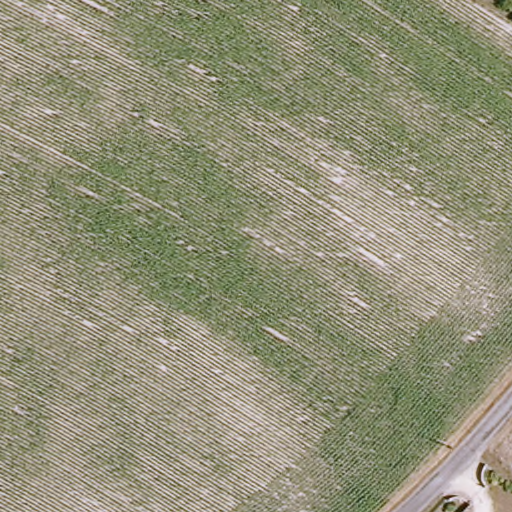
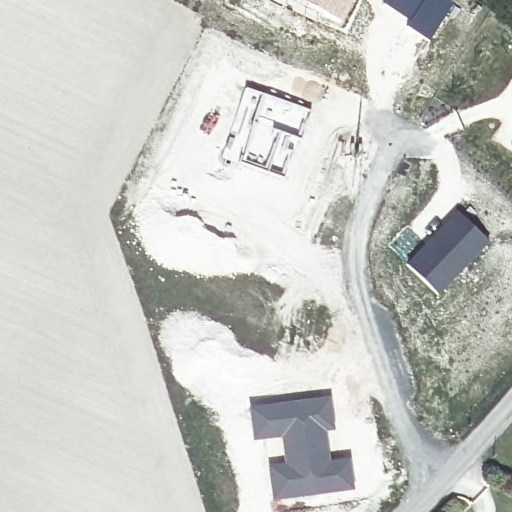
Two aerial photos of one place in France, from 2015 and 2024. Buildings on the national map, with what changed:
new [(302,0),(348,0),(338,19),(302,0)]
new [(450,0),(453,3),(428,37),(383,1),(385,0),(450,0)]
new [(456,207),(491,241),(438,294),(406,262),(456,207)]
new [(331,395),(335,430),(327,432),(330,459),(351,457),(354,489),(272,499),(268,464),(283,462),(280,438),(253,441),(249,407),(331,395)]

